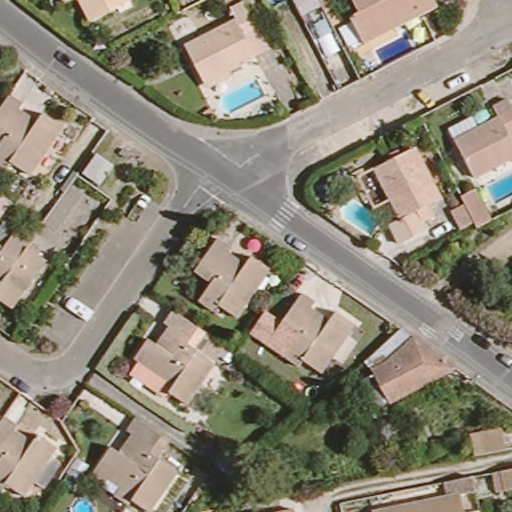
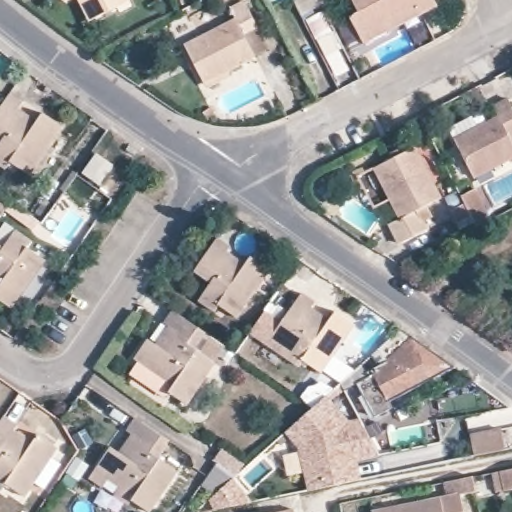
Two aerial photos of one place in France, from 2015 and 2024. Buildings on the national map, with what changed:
unchanged [(58,3),(56,0),(63,0),(58,3)]
unchanged [(132,4),(93,24),(84,4),(82,0),(130,0),(132,4)]
unchanged [(219,86),(213,77),(205,81),(198,67),(189,47),(239,21),(235,14),(232,6),(244,0),(247,0),(259,24),(247,30),(258,55),(238,65),(244,74),(219,86)]
unchanged [(368,46),(363,48),(349,18),(355,15),(348,0),(439,0),(444,8),(427,16),(403,28),(368,46)]
unchanged [(0,99),(6,91),(21,102),(11,117),(27,128),(39,114),(62,131),(27,176),(13,167),(7,174),(0,169),(0,148),(3,143),(0,141),(0,99)]
unchanged [(471,184),(449,141),(488,121),(482,110),(510,96),(512,101),(512,164),(471,184)]
unchanged [(385,227),(397,221),(372,171),(414,148),(439,197),(423,207),(433,229),(395,246),(385,227)]
unchanged [(112,166),(97,189),(79,177),(95,154),(112,166)]
unchanged [(447,213),(462,204),(460,198),(472,192),(484,215),(455,228),(447,213)]
unchanged [(36,241),(31,250),(48,263),(13,312),(0,303),(0,300),(6,291),(0,287),(0,239),(9,245),(20,230),(36,241)]
unchanged [(259,253),(277,266),(242,317),(221,303),(215,312),(199,301),(211,283),(195,271),(220,236),(235,246),(231,253),(250,265),(259,253)]
unchanged [(362,326),(324,380),(307,370),(303,376),(275,358),(288,339),(275,328),(300,292),(317,304),(314,311),(334,324),(342,312),(362,326)]
unchanged [(164,324),(173,310),(209,335),(201,348),(215,357),(183,405),(163,391),(166,387),(135,366),(150,343),(160,349),(173,330),(164,324)]
unchanged [(416,329),(468,370),(405,404),(390,411),(370,372),(382,361),(416,329)]
new [(284,432),(310,407),(300,396),(320,378),(332,389),(327,394),(349,420),(358,417),(379,455),(358,462),(362,478),(307,490),(302,472),(287,476),(281,455),(296,451),(284,432)]
unchanged [(133,416),(172,444),(159,464),(176,477),(152,512),(139,512),(128,504),(130,500),(89,473),(104,451),(119,461),(133,442),(121,433),(133,416)]
unchanged [(14,430),(7,440),(28,456),(40,440),(58,452),(27,499),(10,488),(5,495),(0,491),(0,423),(1,421),(14,430)]
unchanged [(499,452),(469,458),(465,433),(495,427),(499,452)]
unchanged [(215,462),(237,476),(222,499),(199,486),(215,462)]
unchanged [(507,493),(502,472),(512,470),(512,492),(507,493)]
unchanged [(463,492),(467,512),(372,512),(372,511),(463,492)]
unchanged [(294,512),(273,512),(293,508),(294,512)]

